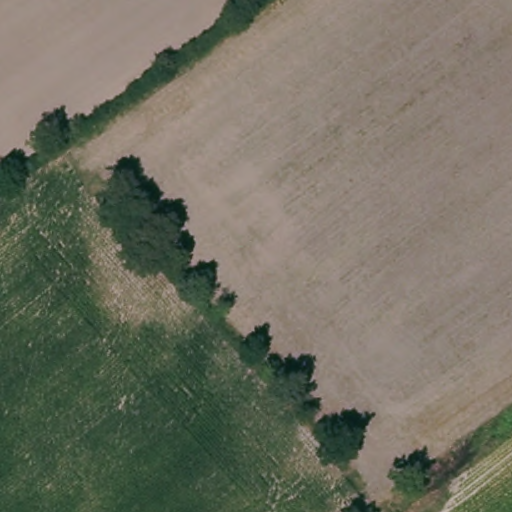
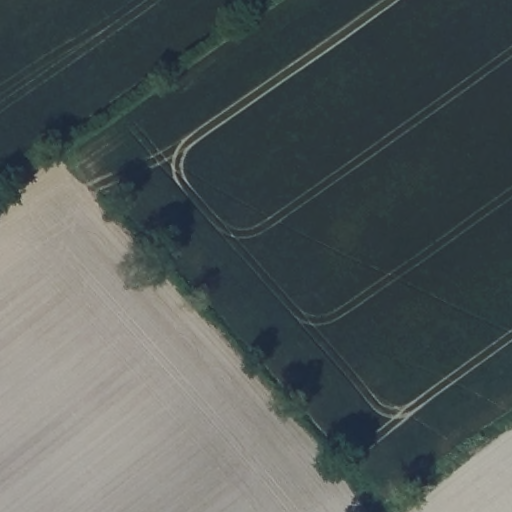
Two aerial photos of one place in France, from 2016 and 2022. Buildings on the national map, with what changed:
[]

